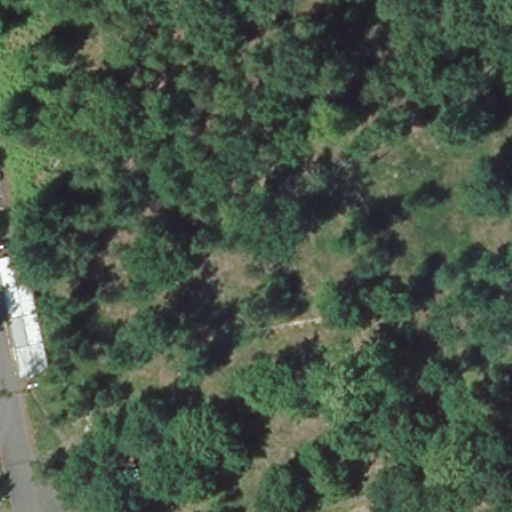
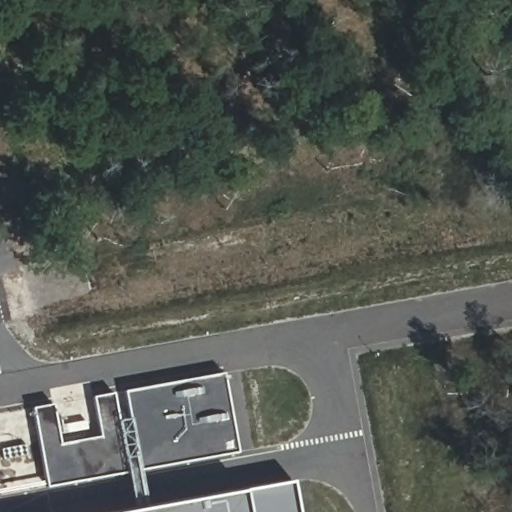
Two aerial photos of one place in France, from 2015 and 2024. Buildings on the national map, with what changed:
new [(435,299),(443,333),(355,347),(351,315),(435,299)]
new [(137,476),(54,490),(38,411),(57,407),(65,447),(107,440),(99,399),(229,372),(244,455),(150,472),(157,511),(302,485),(307,512),(144,512),(137,476)]

